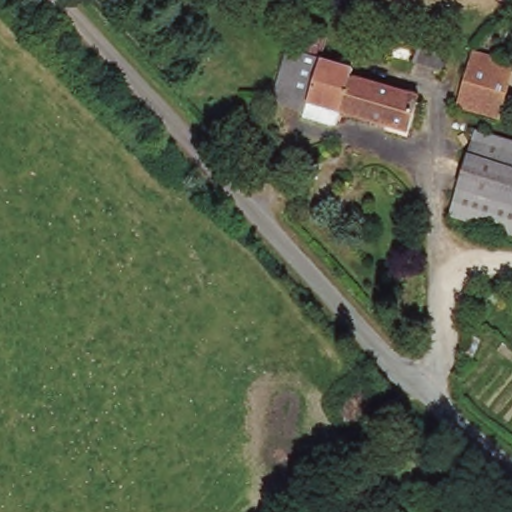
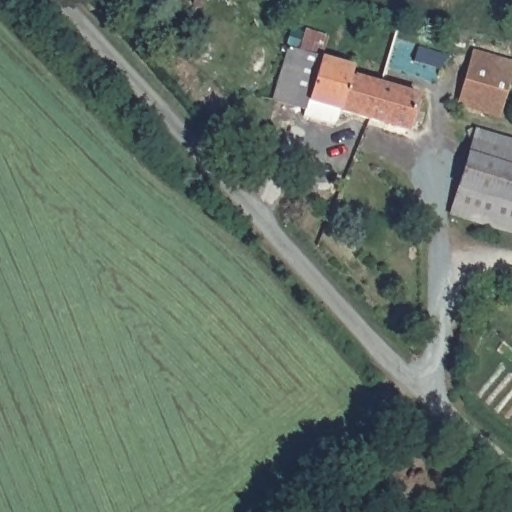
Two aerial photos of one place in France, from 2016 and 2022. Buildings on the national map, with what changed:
unchanged [(309,53),(315,34),(330,38),(325,58),(355,66),(353,75),(382,85),(372,117),(316,100),(314,110),(290,103),(281,100),(283,95),(296,50),(309,53)]
unchanged [(431,53),(442,56),(438,70),(413,64),(416,49),(431,53)]
unchanged [(471,52),(508,60),(512,61),(512,71),(503,99),(498,116),(457,105),(471,52)]
unchanged [(382,85),(420,97),(411,129),(372,117),(382,85)]
unchanged [(480,132),(512,143),(512,232),(455,215),(480,132)]

